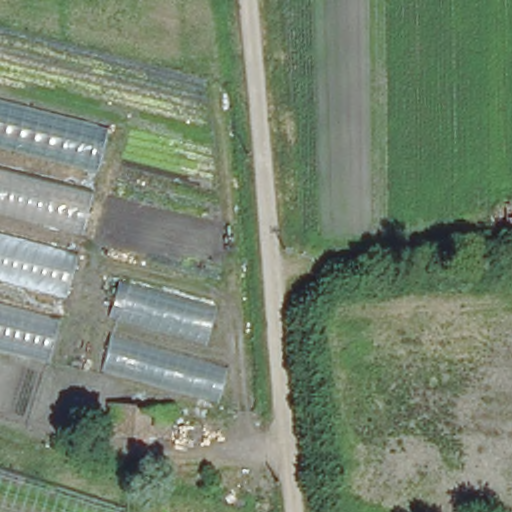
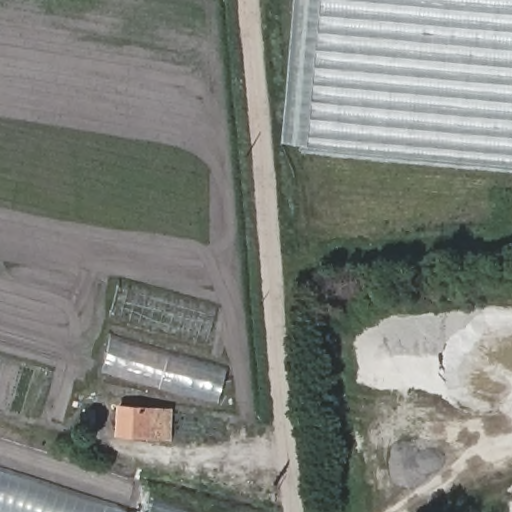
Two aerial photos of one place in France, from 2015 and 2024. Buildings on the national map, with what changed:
new [(295,0),(512,0),(512,168),(307,150),(307,144),(282,142),(295,0)]
unchanged [(487,208),(512,207),(512,229),(487,230),(487,208)]
demolished [(65,293),(0,277),(0,234),(75,253),(65,293)]
demolished [(216,307),(207,342),(109,314),(120,279),(216,307)]
demolished [(58,321),(47,359),(0,347),(0,306),(58,321)]
demolished [(228,364),(219,401),(102,369),(112,333),(228,364)]
unchanged [(114,444),(117,409),(179,413),(176,448),(114,444)]
unchanged [(128,512),(0,512),(0,468),(129,509),(128,512)]

